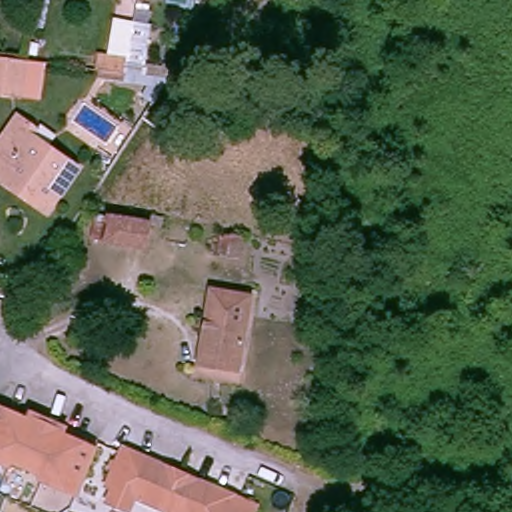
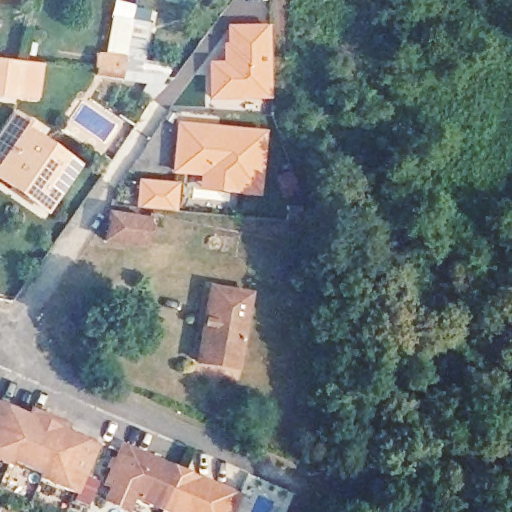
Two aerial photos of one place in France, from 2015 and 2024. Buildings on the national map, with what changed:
new [(192,0),(189,11),(162,2),(163,0),(192,0)]
unchanged [(91,78),(94,54),(106,56),(110,20),(146,27),(138,64),(125,61),(124,81),(91,78)]
new [(220,60),(220,43),(224,43),(224,24),(269,24),(272,100),(208,102),(205,61),(220,60)]
unchanged [(0,60),(0,55),(1,55),(0,60)]
unchanged [(23,93),(0,86),(0,60),(1,55),(34,59),(23,93)]
unchanged [(0,161),(0,144),(25,116),(40,129),(36,134),(67,161),(81,173),(44,215),(36,208),(25,198),(0,177),(0,175),(6,167),(0,161)]
new [(175,121),(265,130),(260,198),(197,191),(198,177),(169,173),(175,121)]
new [(136,179),(177,183),(174,212),(134,208),(136,179)]
unchanged [(99,238),(103,213),(117,215),(156,222),(153,247),(113,240),(99,238)]
unchanged [(219,233),(239,236),(236,256),(216,252),(219,233)]
unchanged [(237,368),(197,362),(210,288),(249,294),(237,368)]
unchanged [(42,475),(8,460),(6,465),(0,462),(0,405),(27,417),(29,413),(64,428),(61,433),(94,447),(74,493),(73,495),(41,480),(42,475)]
unchanged [(257,512),(175,512),(168,509),(138,495),(134,505),(113,495),(117,486),(111,483),(127,446),(185,472),(243,498),(260,505),(257,512)]
unchanged [(0,509),(1,512),(0,512),(0,509)]

